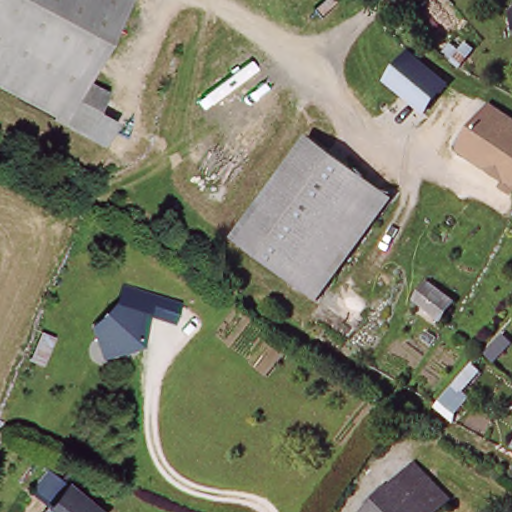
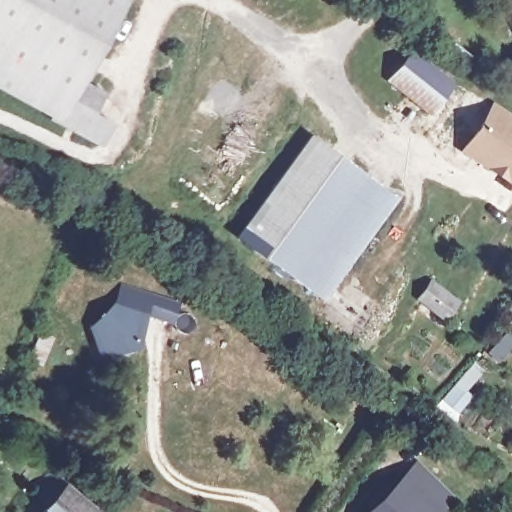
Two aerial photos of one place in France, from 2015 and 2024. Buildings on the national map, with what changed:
unchanged [(106,92),(95,110),(113,121),(98,147),(47,117),(50,114),(0,85),(0,0),(131,0),(85,80),(106,92)]
unchanged [(431,105),(393,74),(412,50),(453,80),(431,105)]
unchanged [(506,185),(510,179),(464,149),(493,104),(512,116),(512,189),(506,185)]
unchanged [(327,149),(395,195),(378,221),(329,296),(240,240),(310,136),(327,149)]
unchanged [(460,302),(447,318),(430,303),(422,296),(435,282),(460,302)]
unchanged [(125,286),(156,297),(180,305),(175,320),(150,313),(145,311),(136,342),(105,353),(95,325),(120,301),(125,286)]
unchanged [(470,398),(458,410),(443,397),(461,377),(473,365),(481,372),(469,385),(463,390),(470,398)]
unchanged [(375,508),(368,502),(375,495),(383,486),(390,492),(403,480),(415,468),(445,498),(432,510),(431,512),(370,512),(375,508)]
unchanged [(62,502),(42,486),(56,470),(70,482),(106,512),(54,512),(62,502)]

